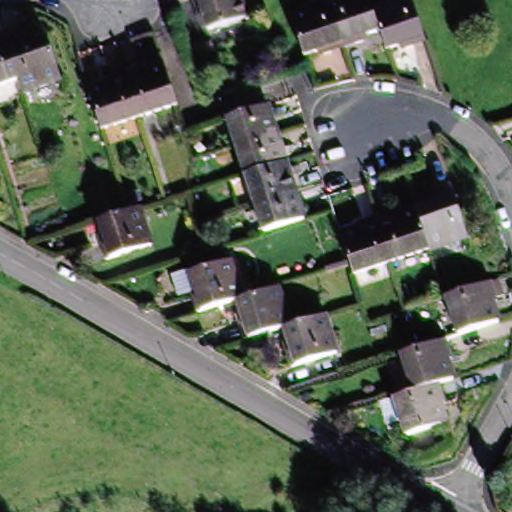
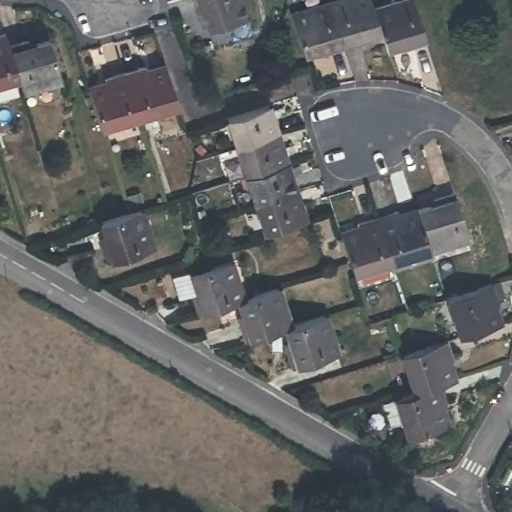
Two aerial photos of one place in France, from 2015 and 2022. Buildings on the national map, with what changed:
unchanged [(250,24),(210,35),(204,14),(196,16),(192,0),(243,0),(250,24)]
unchanged [(371,11),(377,31),(360,36),(362,45),(343,51),(329,5),(345,0),(368,0),(371,11)]
unchanged [(416,17),(423,41),(407,49),(405,40),(382,47),(377,31),(371,11),(407,0),(410,0),(416,17)]
unchanged [(292,18),(329,5),(343,51),(324,57),(322,47),(303,55),(292,18)]
unchanged [(5,35),(10,50),(16,70),(20,84),(0,90),(0,37),(5,35)]
unchanged [(20,84),(16,70),(10,50),(33,41),(35,48),(50,42),(63,84),(25,96),(20,84)]
unchanged [(141,71),(145,80),(168,74),(180,112),(141,124),(126,76),(141,71)]
unchanged [(112,91),(108,82),(126,76),(141,124),(101,136),(89,98),(112,91)]
unchanged [(270,109),(280,137),(237,150),(229,122),(270,109)]
unchanged [(237,150),(280,137),(290,169),(247,182),(237,150)]
unchanged [(247,182),(290,169),(297,195),(255,208),(247,182)]
unchanged [(255,208),(297,195),(307,226),(265,240),(255,208)]
unchanged [(408,210),(429,204),(431,212),(454,205),(466,245),(425,258),(411,219),(408,210)]
unchanged [(128,215),(142,210),(155,252),(110,267),(102,243),(109,242),(102,222),(128,215)]
unchanged [(387,217),(390,225),(411,219),(425,258),(390,270),(373,221),(387,217)]
unchanged [(358,236),(356,227),(373,221),(390,270),(349,283),(346,273),(336,243),(358,236)]
unchanged [(190,299),(200,295),(193,280),(236,266),(246,303),(240,305),(196,320),(190,299)]
unchanged [(458,340),(445,299),(486,286),(492,284),(501,310),(491,312),(497,328),(458,340)]
unchanged [(240,328),(246,325),(240,305),(246,303),(282,291),(295,330),(285,333),(243,346),(240,328)]
unchanged [(338,361),(291,376),(284,356),(292,353),(285,333),(295,330),(325,320),(338,361)]
unchanged [(445,388),(419,397),(405,357),(449,343),(458,366),(450,368),(455,385),(445,388)]
unchanged [(419,397),(445,388),(452,412),(445,415),(452,435),(410,449),(395,405),(419,397)]

